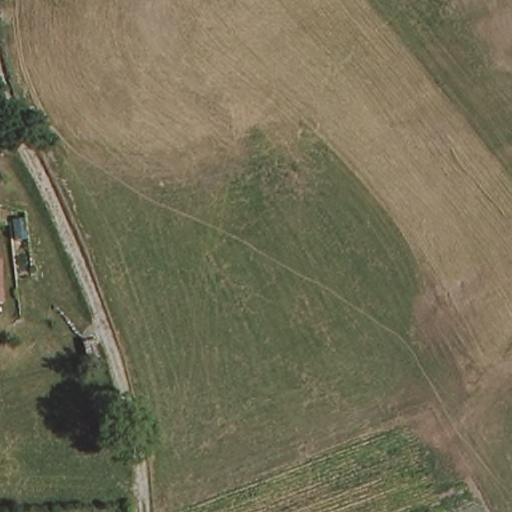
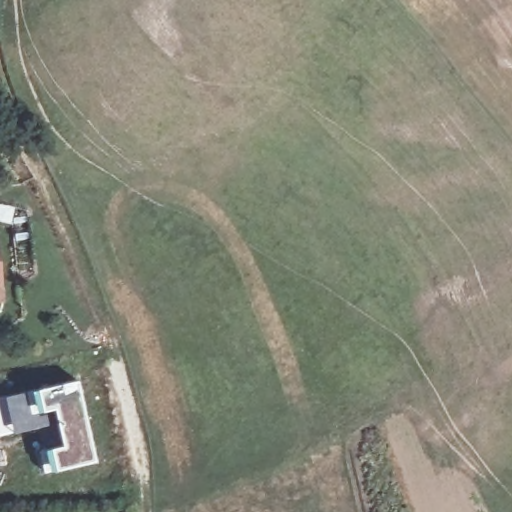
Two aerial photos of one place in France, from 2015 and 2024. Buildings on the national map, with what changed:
unchanged [(3,293),(0,294),(0,241),(3,293)]
new [(77,376),(96,462),(52,471),(46,446),(60,443),(53,410),(45,410),(48,425),(0,435),(0,395),(77,376)]

